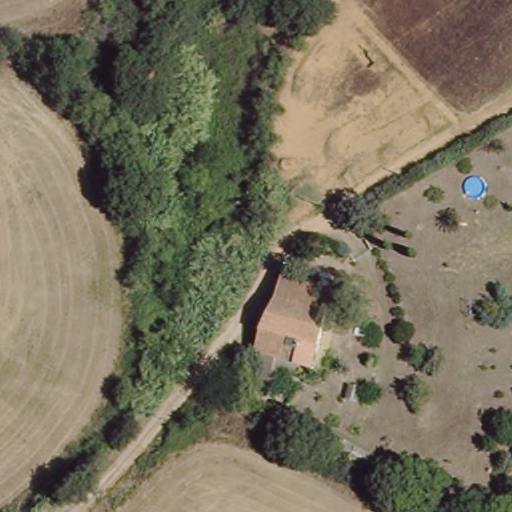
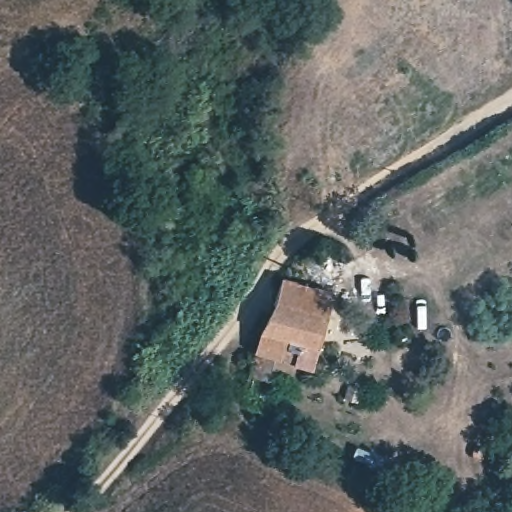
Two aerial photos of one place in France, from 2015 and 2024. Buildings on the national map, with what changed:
unchanged [(261,345),(266,323),(280,297),(287,273),(303,277),(321,282),(337,286),(318,363),(283,351),(280,363),(258,356),(261,345)]

